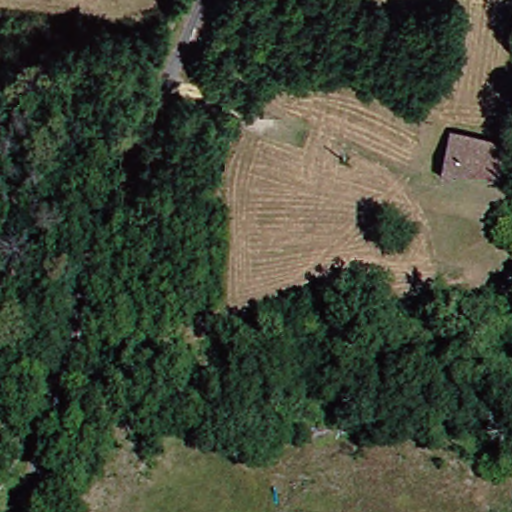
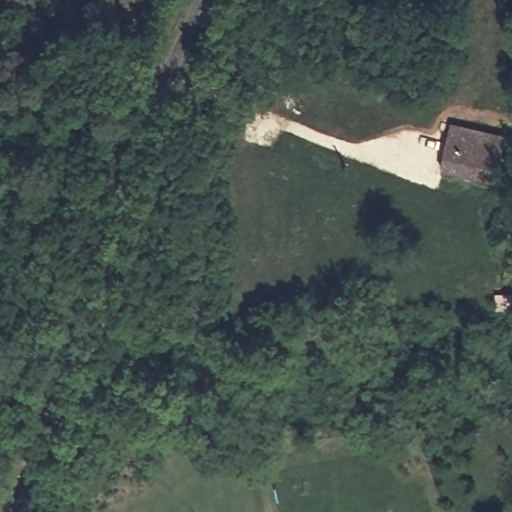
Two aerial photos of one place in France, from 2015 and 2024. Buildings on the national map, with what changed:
unchanged [(464,125),(512,132),(512,180),(457,171),(464,125)]
unchanged [(507,305),(512,305),(512,321),(509,321),(507,305)]

